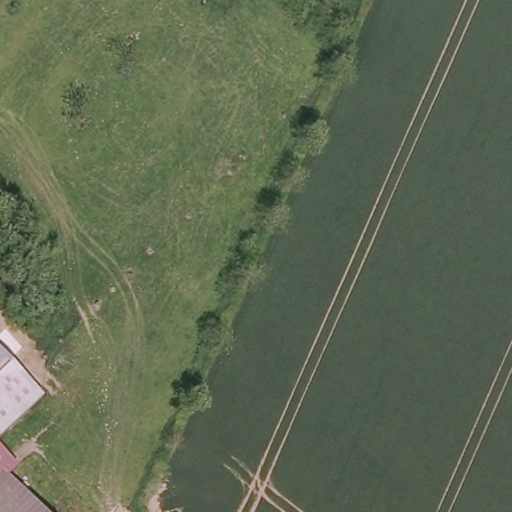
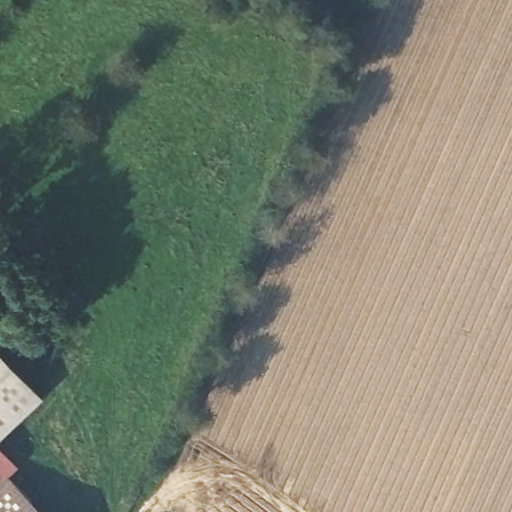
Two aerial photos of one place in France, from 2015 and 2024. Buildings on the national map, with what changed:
unchanged [(41,424),(0,454),(0,369),(13,387),(41,424)]
unchanged [(0,488),(24,512),(0,512),(0,488)]

